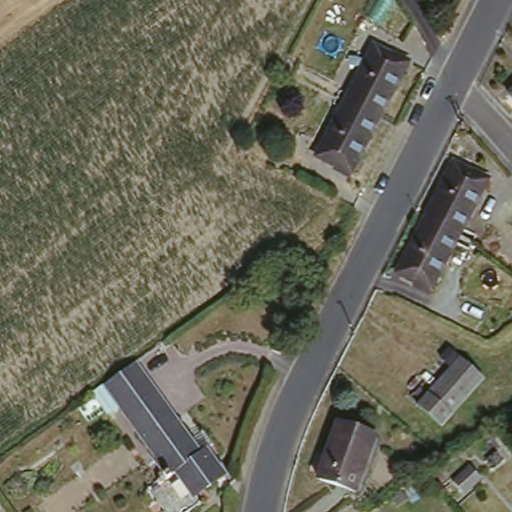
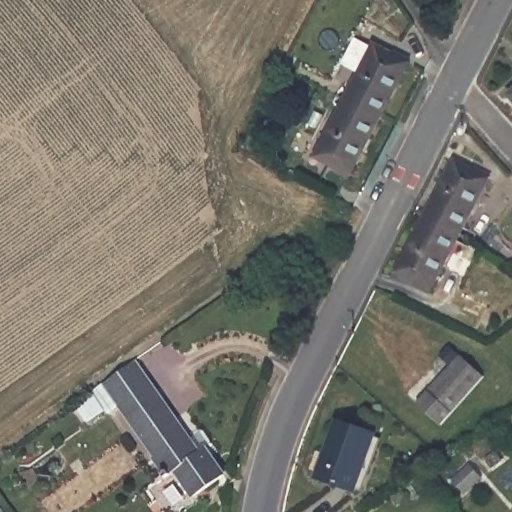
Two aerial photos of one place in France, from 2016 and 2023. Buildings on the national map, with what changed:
unchanged [(340,105),(368,49),(403,67),(375,122),(340,105)]
unchanged [(512,96),(512,110),(505,102),(512,96)]
unchanged [(346,179),(311,161),(340,105),(375,122),(346,179)]
unchanged [(418,219),(447,164),(482,182),(453,237),(418,219)]
unchanged [(424,294),(390,276),(418,219),(453,237),(424,294)]
unchanged [(472,313),(466,326),(441,313),(446,302),(472,313)]
unchanged [(458,361),(483,381),(441,428),(417,409),(458,361)]
unchanged [(132,367),(197,455),(202,451),(222,478),(192,498),(174,473),(164,481),(150,462),(156,460),(104,387),(132,367)]
unchanged [(342,422),(380,435),(360,491),(322,478),(342,422)]
unchanged [(466,466),(478,477),(461,494),(450,482),(466,466)]

